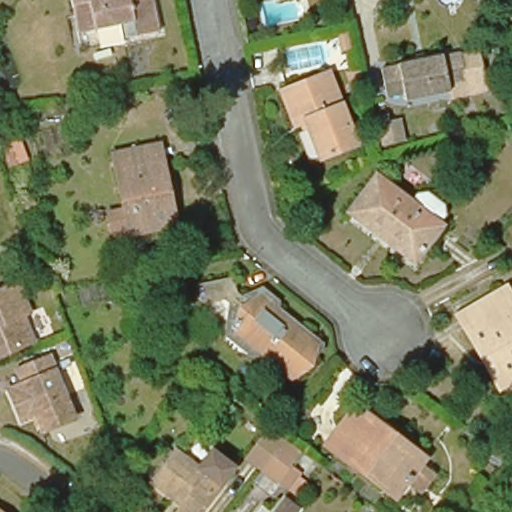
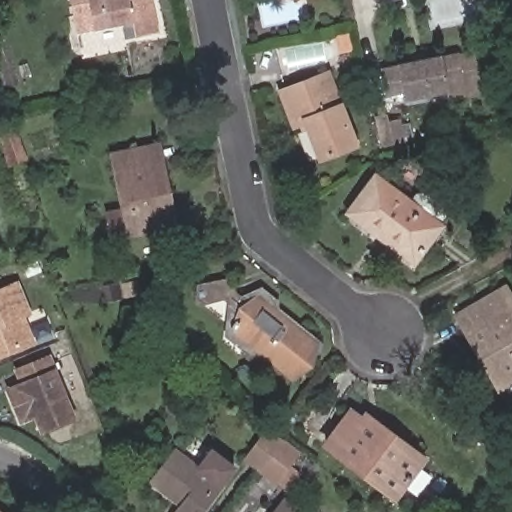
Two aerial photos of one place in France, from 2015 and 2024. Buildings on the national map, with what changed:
unchanged [(69,0),(152,0),(159,31),(124,38),(120,23),(76,32),(69,0)]
unchanged [(280,2),(280,0),(294,0),(280,2)]
unchanged [(377,63),(395,59),(394,58),(438,50),(438,51),(455,47),(461,74),(444,78),(445,85),(401,94),(400,86),(382,90),(377,63)]
unchanged [(300,123),(293,125),(281,90),(329,73),(355,145),(321,158),(310,128),(303,131),(300,123)]
unchanged [(0,142),(0,140),(21,134),(30,161),(9,168),(0,142)]
unchanged [(175,229),(134,238),(117,157),(159,148),(166,146),(170,162),(176,195),(184,227),(175,229)]
unchanged [(348,213),(377,176),(441,226),(415,259),(376,229),(375,232),(348,213)]
unchanged [(240,314),(220,297),(205,301),(191,294),(192,281),(226,275),(235,289),(244,296),(257,292),(267,300),(267,307),(310,345),(305,351),(308,355),(289,377),(255,347),(246,349),(225,330),(240,314)]
unchanged [(24,317),(18,320),(29,345),(0,358),(0,295),(12,289),(24,317)]
unchanged [(482,345),(466,317),(506,294),(512,304),(512,369),(507,371),(500,376),(482,345)]
unchanged [(73,423),(43,435),(36,421),(21,426),(8,393),(23,387),(18,373),(47,361),(73,423)]
unchanged [(364,423),(368,418),(393,436),(428,461),(423,467),(396,500),(338,456),(330,450),(337,440),(355,416),(364,423)]
unchanged [(298,449),(290,460),(278,477),(260,465),(259,467),(243,455),(265,424),(277,433),(280,435),(281,436),(283,438),(298,449)]
unchanged [(173,450),(199,470),(212,453),(234,469),(221,486),(224,488),(206,512),(176,512),(179,507),(172,502),(149,483),(173,450)]
unchanged [(294,512),(273,512),(281,502),(294,512)]

